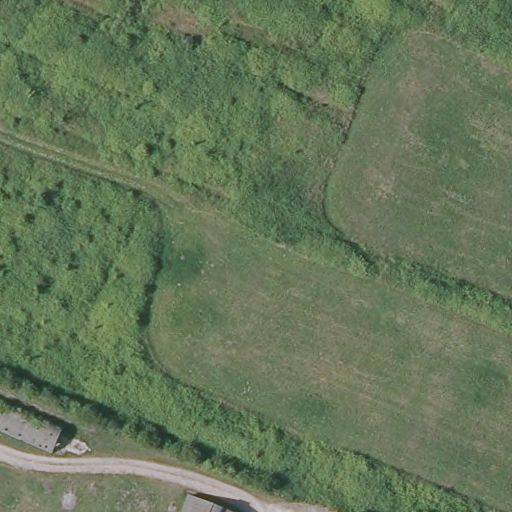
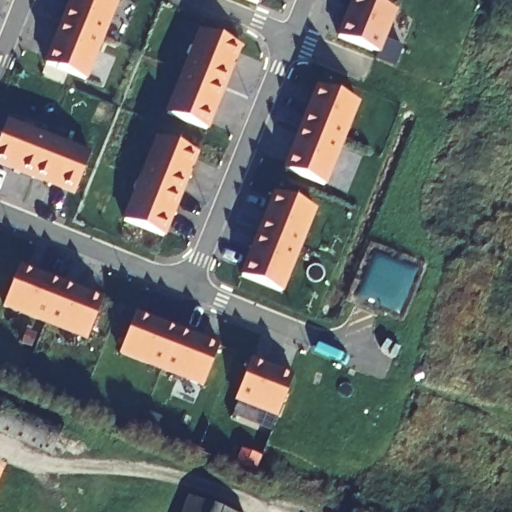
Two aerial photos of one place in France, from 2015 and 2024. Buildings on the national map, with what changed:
new [(89,80),(44,63),(69,0),(120,0),(89,80)]
new [(398,10),(383,53),(338,38),(352,0),(372,0),(398,10)]
new [(240,41),(206,124),(167,108),(201,25),(240,41)]
new [(285,163),(318,81),(357,96),(324,179),(285,163)]
new [(92,152),(75,195),(0,166),(0,141),(10,118),(92,152)]
new [(201,153),(167,235),(123,219),(156,135),(201,153)]
new [(319,209),(284,293),(240,275),(275,191),(319,209)]
new [(105,297),(87,341),(4,307),(22,263),(105,297)]
new [(221,344),(204,388),(120,355),(138,310),(221,344)]
new [(295,373),(278,417),(235,401),(253,356),(295,373)]
unchanged [(52,453),(0,431),(0,398),(65,426),(52,453)]
new [(3,472),(0,478),(0,471),(3,472)]
unchanged [(229,512),(174,512),(181,494),(229,512)]

